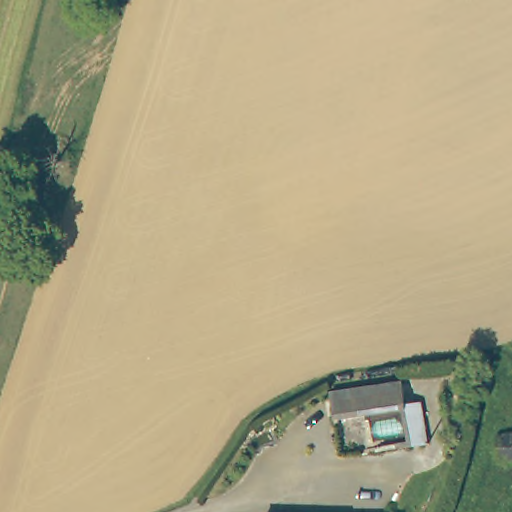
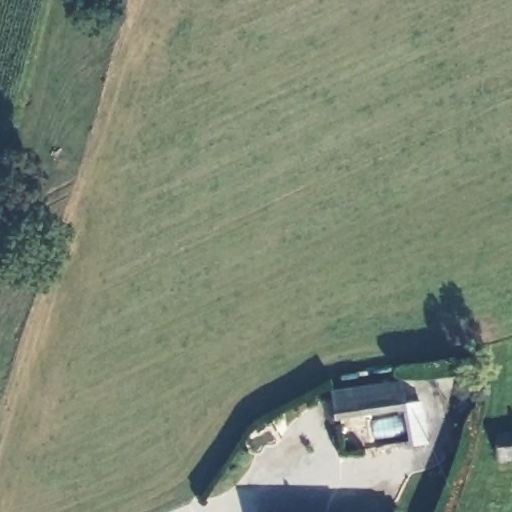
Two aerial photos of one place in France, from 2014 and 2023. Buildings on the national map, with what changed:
unchanged [(410,404),(424,401),(431,443),(343,456),(335,392),(406,382),(410,404)]
unchanged [(496,435),(512,434),(512,459),(499,460),(496,435)]

